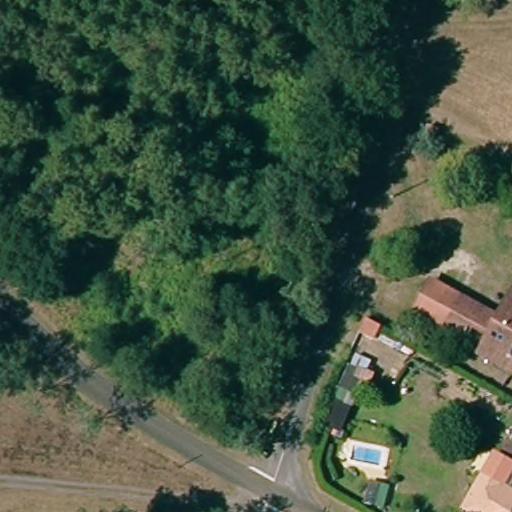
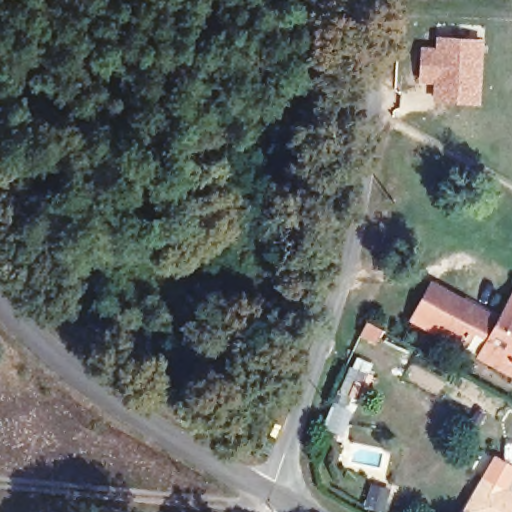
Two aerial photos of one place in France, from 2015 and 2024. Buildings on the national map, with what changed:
new [(420,46),(434,46),(435,35),(484,38),(480,104),(432,102),(432,84),(418,83),(420,46)]
demolished [(437,136),(433,145),(425,139),(428,131),(437,136)]
unchanged [(417,323),(435,289),(466,305),(449,339),(417,323)]
unchanged [(493,339),(477,331),(468,349),(449,339),(466,305),(502,324),(512,305),(512,373),(498,366),(483,359),(488,349),(493,339)]
unchanged [(376,345),(367,340),(373,329),(382,334),(376,345)]
unchanged [(503,451),(512,451),(512,469),(503,469),(503,451)]
unchanged [(495,465),(512,474),(512,478),(502,496),(507,499),(512,489),(512,512),(468,512),(495,465)]

